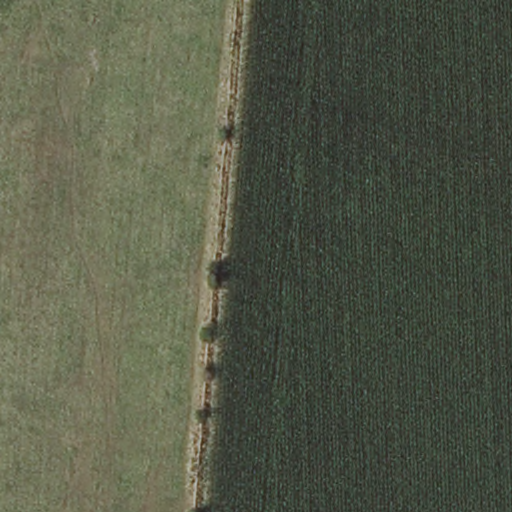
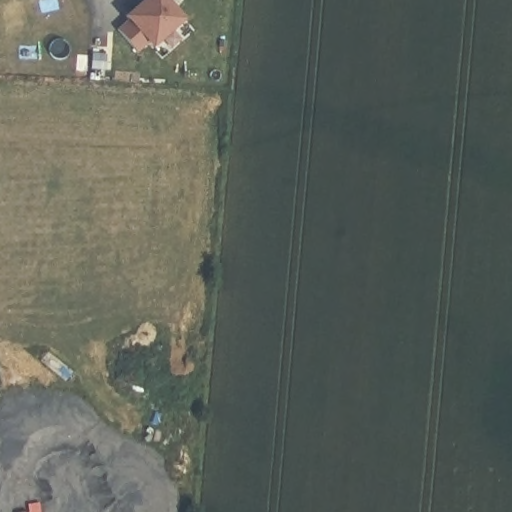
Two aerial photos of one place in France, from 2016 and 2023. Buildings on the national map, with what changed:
new [(187,20),(153,50),(146,41),(135,50),(116,30),(127,19),(123,15),(141,0),(170,0),(187,20)]

